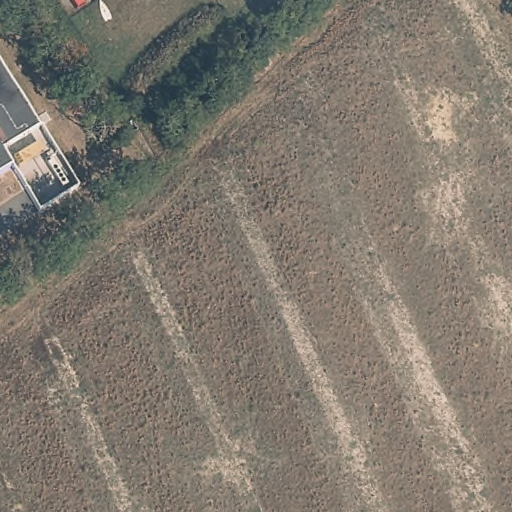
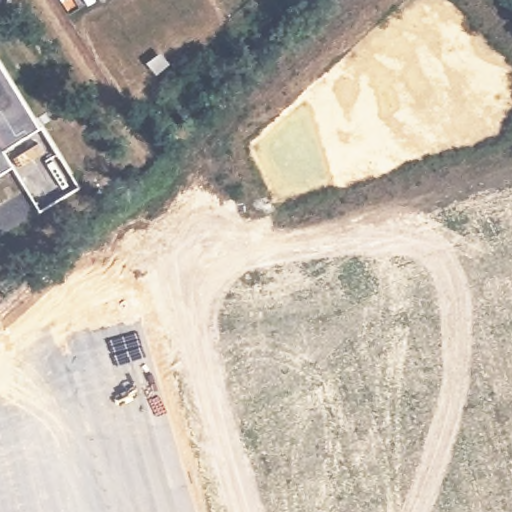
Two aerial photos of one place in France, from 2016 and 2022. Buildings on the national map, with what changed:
unchanged [(36,127),(0,149),(11,164),(0,171),(0,68),(36,127)]

